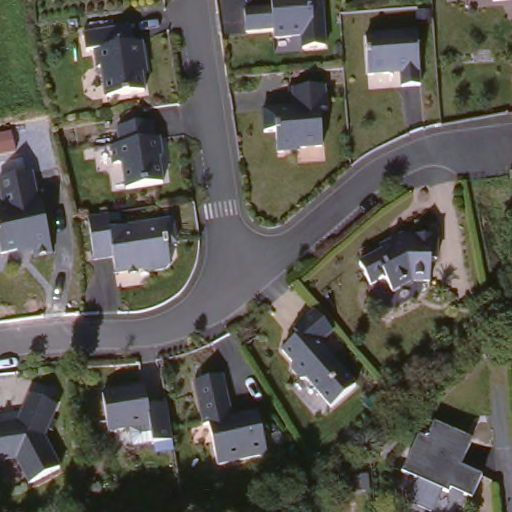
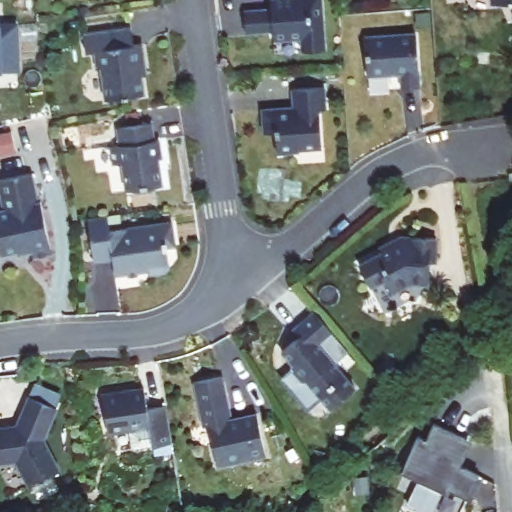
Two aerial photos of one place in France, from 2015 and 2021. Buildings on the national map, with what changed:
unchanged [(309,51),(308,38),(280,40),(279,31),(252,33),(250,11),(284,9),(283,0),(328,0),(331,49),(309,51)]
unchanged [(134,23),(137,41),(144,40),(147,60),(143,60),(147,91),(109,96),(106,64),(102,65),(99,47),(89,49),(87,29),(134,23)]
new [(18,69),(1,69),(0,71),(0,26),(17,26),(18,69)]
unchanged [(417,28),(421,80),(402,81),(401,65),(390,66),(390,68),(368,69),(366,31),(417,28)]
unchanged [(327,108),(319,108),(322,146),(300,147),(300,150),(278,151),(276,130),(264,131),(263,108),(294,106),(293,88),(325,86),(327,108)]
unchanged [(154,136),(159,135),(163,154),(159,155),(164,181),(127,187),(123,164),(119,160),(113,161),(110,144),(119,142),(117,125),(151,119),(154,136)]
unchanged [(41,203),(52,255),(34,258),(32,249),(1,255),(0,250),(0,211),(4,210),(0,188),(0,180),(33,174),(39,203),(41,203)]
unchanged [(109,212),(111,227),(173,217),(177,241),(168,242),(172,263),(169,267),(152,269),(151,265),(118,270),(115,254),(96,257),(89,215),(109,212)]
unchanged [(391,249),(418,238),(421,238),(421,233),(444,236),(443,256),(437,256),(436,277),(418,278),(417,279),(399,286),(394,275),(378,280),(367,260),(391,249)]
unchanged [(323,341),(360,382),(337,404),(313,378),(306,377),(296,366),(297,359),(287,348),(304,333),(298,326),(318,308),(337,329),(323,341)]
unchanged [(229,372),(237,415),(261,410),(269,453),(221,462),(213,421),(208,422),(199,378),(229,372)]
unchanged [(135,423),(112,426),(107,388),(149,382),(153,402),(171,399),(176,434),(177,437),(157,440),(157,439),(138,441),(135,423)]
unchanged [(60,474),(28,489),(16,462),(0,464),(0,434),(17,432),(31,400),(59,412),(46,442),(60,474)]
unchanged [(424,438),(432,441),(437,428),(476,445),(465,470),(486,478),(477,501),(457,493),(455,496),(407,476),(424,438)]

